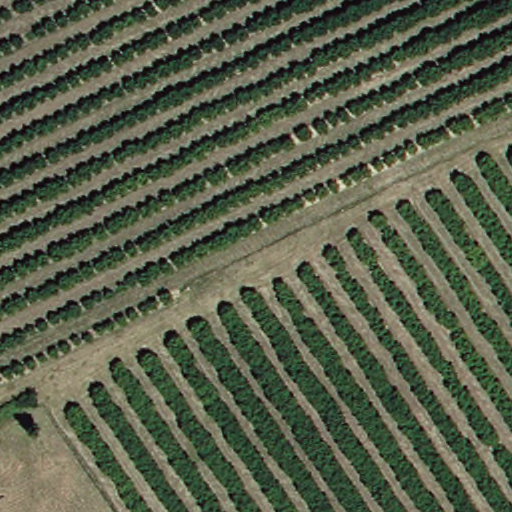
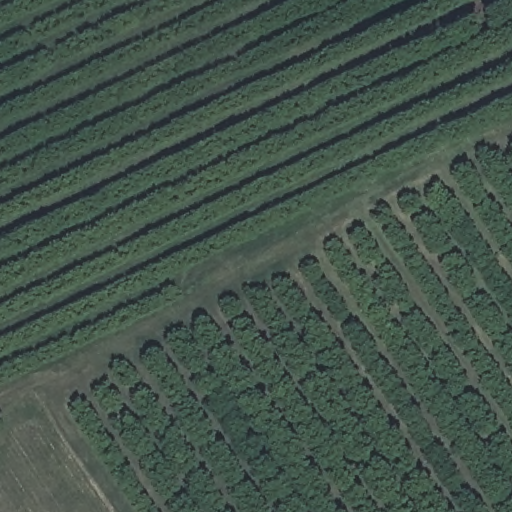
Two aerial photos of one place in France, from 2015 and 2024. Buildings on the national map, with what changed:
[]

